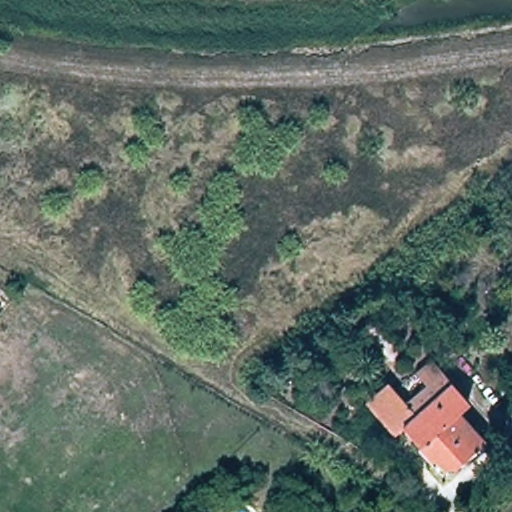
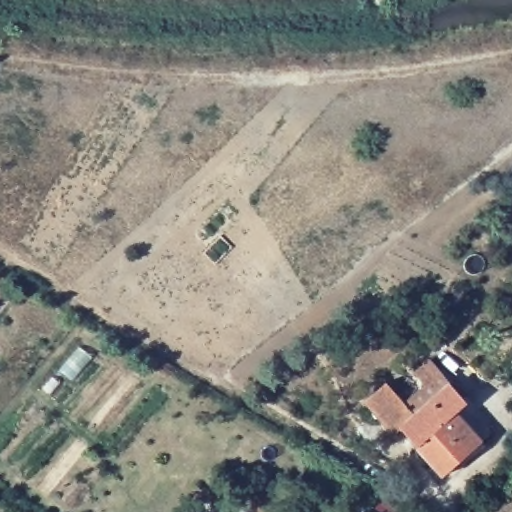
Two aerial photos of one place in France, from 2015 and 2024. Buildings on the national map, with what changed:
unchanged [(439,480),(396,431),(387,439),(358,405),(379,386),(397,406),(418,388),(408,376),(424,362),(462,405),(450,415),(477,445),(439,480)]

